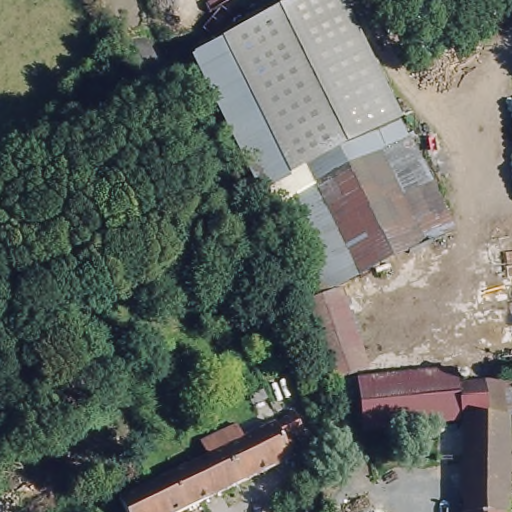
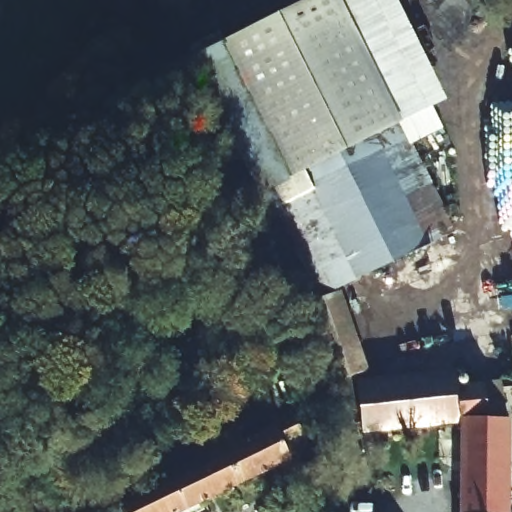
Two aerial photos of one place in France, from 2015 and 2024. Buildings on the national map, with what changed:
unchanged [(410,138),(312,187),(278,205),(198,54),(302,0),(341,0),(410,138)]
new [(410,138),(401,120),(341,0),(398,0),(446,99),(431,106),(443,128),(413,143),(410,138)]
unchanged [(455,229),(325,294),(278,205),(410,138),(455,229)]
unchanged [(330,382),(301,305),(325,294),(340,286),(369,368),(330,382)]
unchanged [(496,399),(506,400),(505,421),(511,421),(510,512),(461,512),(461,420),(447,422),(441,386),(496,380),(496,383),(496,399)]
unchanged [(441,386),(447,422),(364,432),(367,395),(441,386)]
unchanged [(128,493),(155,480),(181,467),(205,455),(198,440),(234,422),(236,427),(241,437),(287,415),(292,412),(302,430),(282,438),(290,455),(172,512),(125,512),(118,497),(128,493)]

